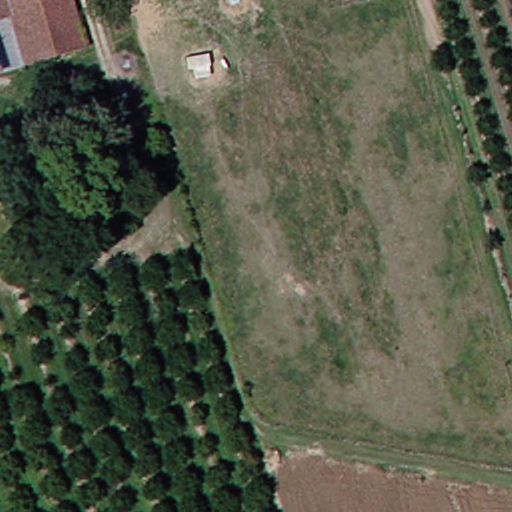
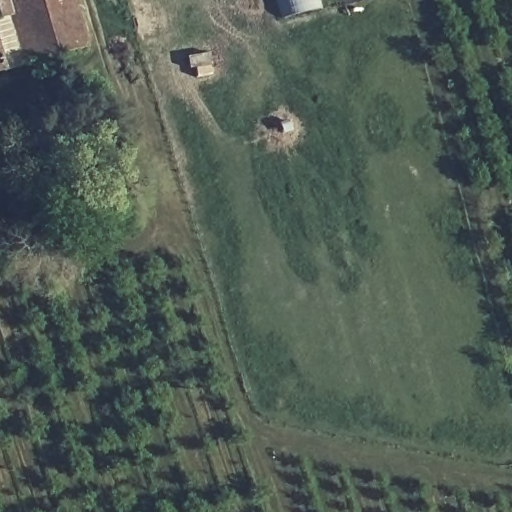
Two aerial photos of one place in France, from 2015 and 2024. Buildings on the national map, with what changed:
unchanged [(80,52),(42,62),(17,70),(0,75),(0,0),(65,0),(78,45),(80,52)]
new [(321,7),(281,19),(277,0),(320,0),(321,7)]

